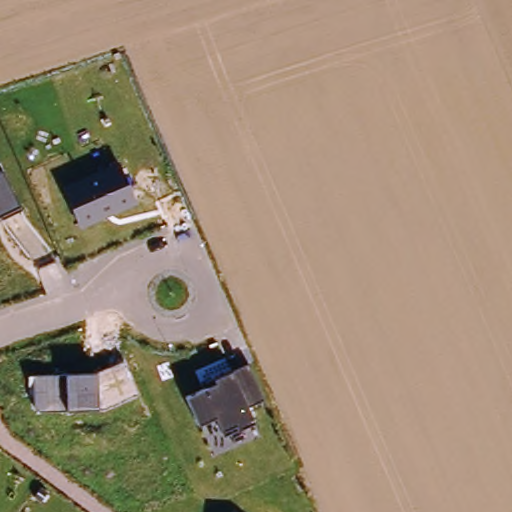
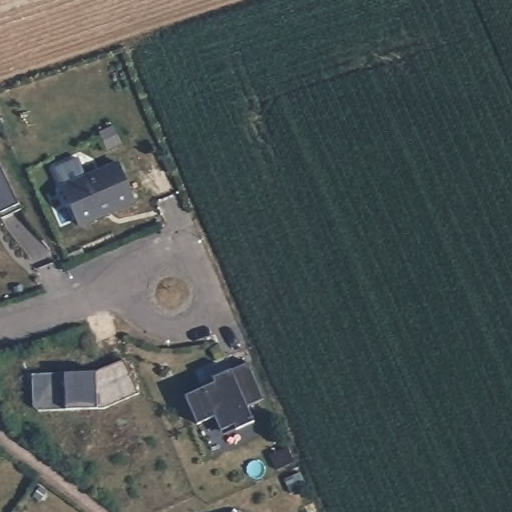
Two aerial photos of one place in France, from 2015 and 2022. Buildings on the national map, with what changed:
unchanged [(117,162),(132,203),(80,226),(62,183),(117,162)]
unchanged [(19,204),(21,210),(0,219),(0,170),(2,169),(19,204)]
unchanged [(137,394),(97,408),(65,408),(32,410),(32,375),(66,373),(97,371),(123,359),(137,394)]
unchanged [(213,385),(212,379),(231,370),(247,364),(263,399),(245,405),(252,421),(223,434),(217,417),(198,424),(188,395),(213,385)]

